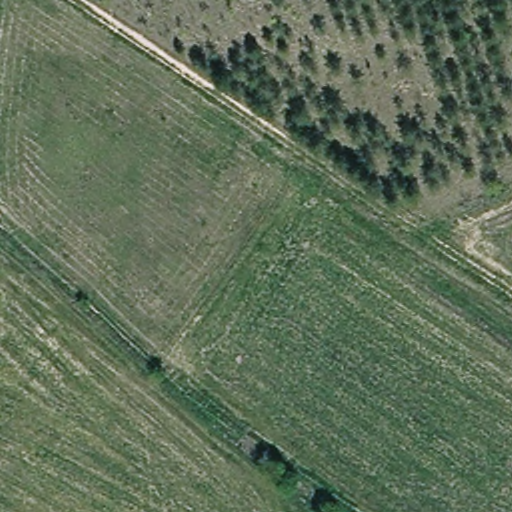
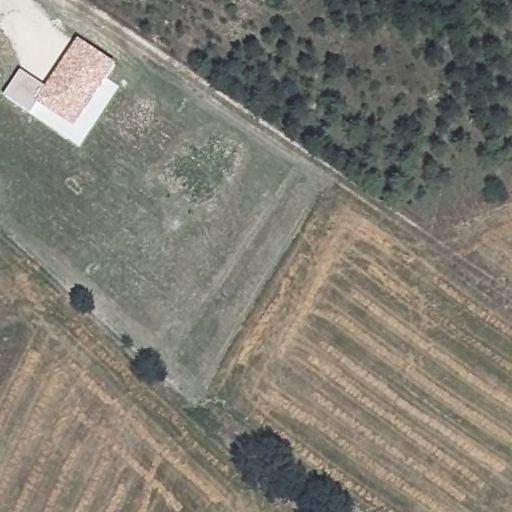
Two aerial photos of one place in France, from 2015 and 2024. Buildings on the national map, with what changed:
new [(115,65),(75,128),(39,104),(31,114),(5,96),(21,71),(46,88),(78,39),(115,65)]

